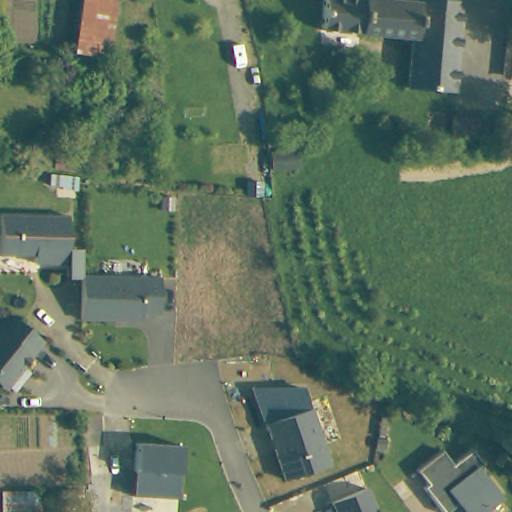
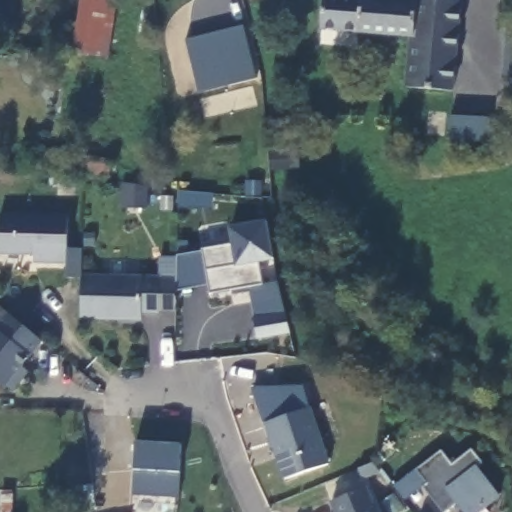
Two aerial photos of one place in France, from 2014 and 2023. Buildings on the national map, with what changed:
unchanged [(73,47),(80,0),(116,0),(109,51),(107,60),(71,55),(73,47)]
unchanged [(414,0),(410,40),(349,33),(335,31),(317,30),(321,0),(366,0),(408,3),(408,0),(414,0)]
unchanged [(459,21),(453,91),(407,88),(410,40),(414,0),(445,0),(461,1),(459,21)]
unchanged [(510,23),(512,23),(512,75),(504,75),(510,23)]
new [(245,26),(257,79),(200,93),(187,40),(245,26)]
unchanged [(421,136),(422,125),(423,111),(441,113),(440,126),(440,138),(421,136)]
new [(124,184),(147,187),(146,207),(123,206),(124,184)]
unchanged [(171,314),(140,314),(141,321),(80,320),(81,280),(65,278),(66,265),(32,264),(32,256),(0,255),(0,213),(67,215),(66,249),(85,249),(84,275),(173,280),(171,314)]
new [(257,337),(254,318),(249,293),(235,295),(234,291),(210,295),(209,286),(176,293),(178,256),(231,242),(229,229),(270,221),(276,262),(257,264),(262,285),(277,282),(283,312),(287,332),(257,337)]
unchanged [(44,342),(29,359),(25,358),(20,366),(29,373),(15,392),(6,385),(4,389),(0,387),(0,307),(44,342)]
unchanged [(285,479),(250,387),(303,387),(331,464),(285,479)]
unchanged [(180,473),(177,498),(132,496),(133,470),(134,441),(180,444),(180,473)]
unchanged [(476,444),(486,459),(480,463),(501,492),(475,512),(470,512),(459,497),(445,507),(425,480),(430,477),(420,463),(446,443),(456,459),(476,444)]
unchanged [(332,502),(368,489),(377,512),(336,512),(332,502)]
unchanged [(38,490),(38,512),(1,512),(0,492),(38,490)]
unchanged [(81,503),(61,506),(60,492),(80,490),(81,503)]

